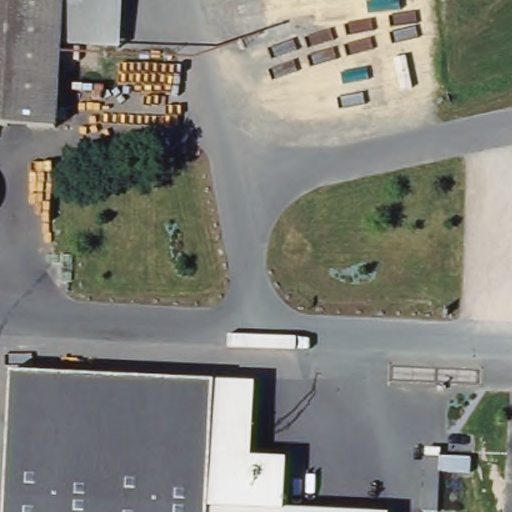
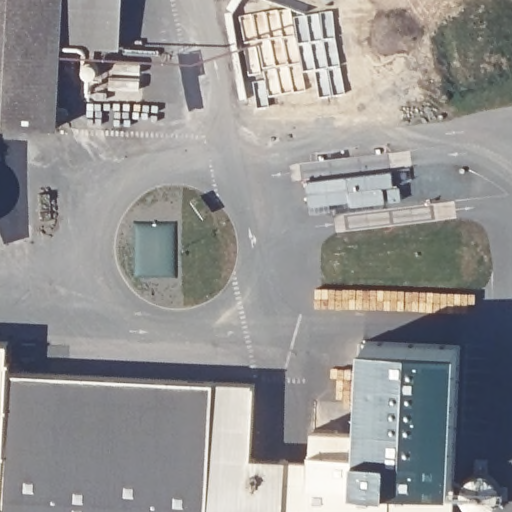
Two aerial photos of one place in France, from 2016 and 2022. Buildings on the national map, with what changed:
unchanged [(52,124),(52,129),(0,126),(0,0),(57,0),(55,44),(52,124)]
unchanged [(55,44),(57,0),(118,0),(115,46),(55,44)]
new [(392,172),(393,187),(383,188),(385,203),(350,207),(350,202),(309,207),(306,183),(392,172)]
new [(312,461),(313,428),(361,428),(365,341),(460,346),(453,486),(452,512),(358,512),(285,509),(287,461),(312,461)]
new [(0,342),(10,343),(9,372),(13,373),(6,499),(0,499),(0,342)]
unchanged [(13,373),(256,383),(252,460),(287,461),(285,509),(358,512),(5,512),(13,373)]
demolished [(443,456),(440,512),(425,511),(428,455),(443,456)]

